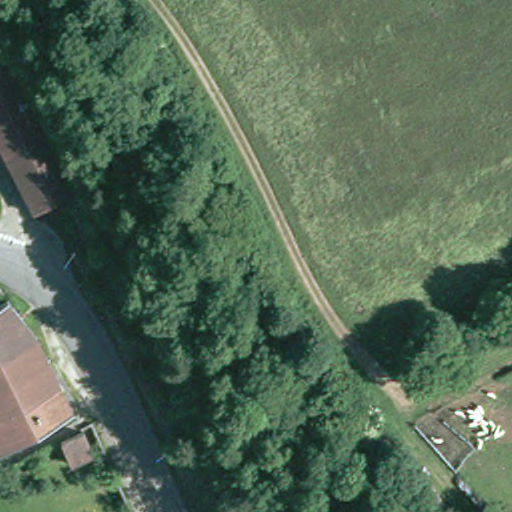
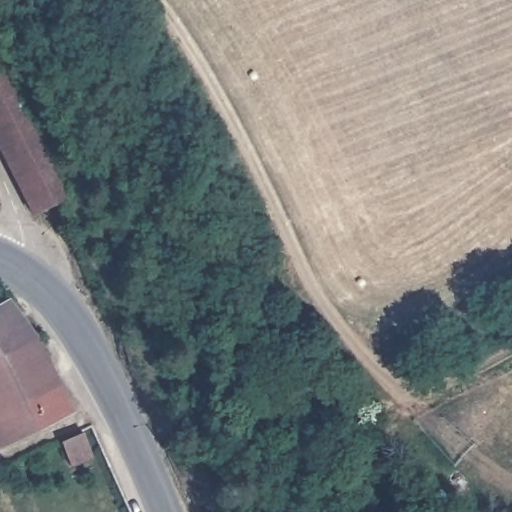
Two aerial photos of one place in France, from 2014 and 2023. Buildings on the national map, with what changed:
unchanged [(0,140),(0,73),(6,70),(60,179),(69,197),(35,213),(6,154),(0,140)]
unchanged [(8,300),(37,336),(72,410),(0,443),(0,303),(8,300)]
unchanged [(70,466),(60,440),(83,430),(92,456),(70,466)]

